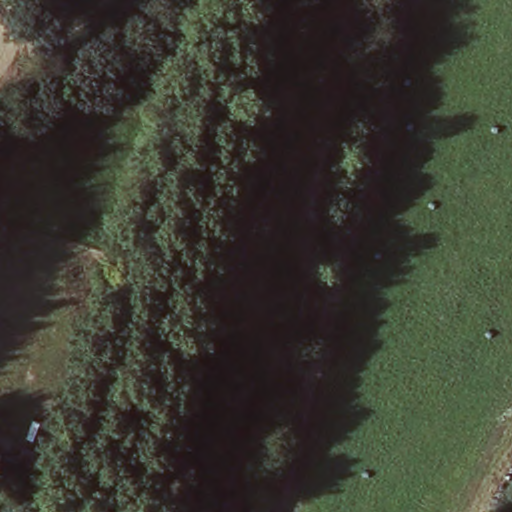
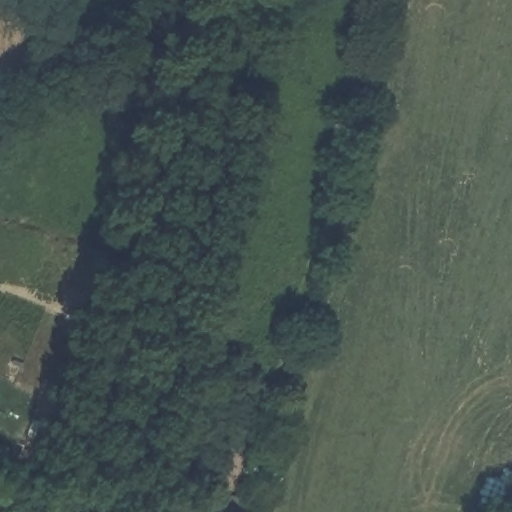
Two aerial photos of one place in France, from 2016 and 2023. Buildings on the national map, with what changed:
unchanged [(207,511),(211,512),(207,512),(207,511)]

